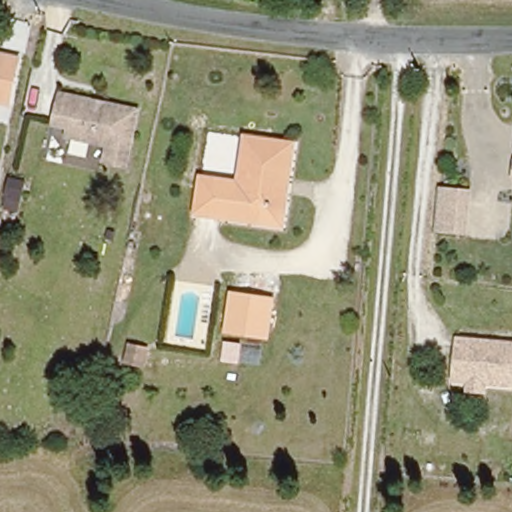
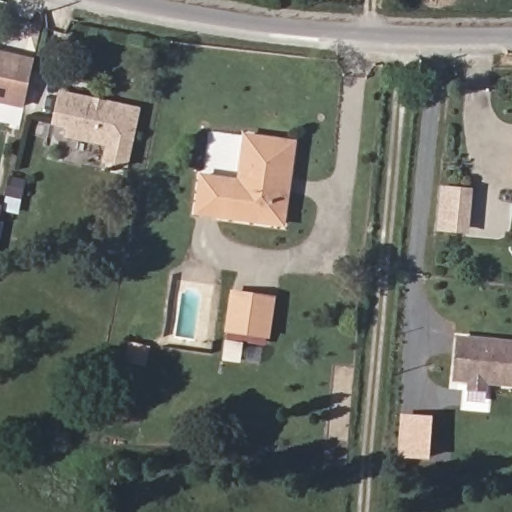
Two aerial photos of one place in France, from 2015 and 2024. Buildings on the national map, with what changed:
unchanged [(20,58),(11,103),(0,101),(0,54),(20,58)]
unchanged [(65,126),(50,123),(56,92),(132,108),(121,164),(101,160),(104,144),(64,135),(65,126)]
unchanged [(277,220),(200,209),(204,176),(241,181),(248,136),(295,143),(290,182),(285,221),(277,220)]
unchanged [(468,236),(433,232),(439,186),(473,189),(468,236)]
unchanged [(30,191),(26,210),(10,206),(15,188),(30,191)]
new [(1,206),(0,210),(0,206),(1,206)]
unchanged [(268,339),(224,333),(231,291),(275,297),(268,339)]
unchanged [(512,340),(512,383),(455,377),(459,336),(512,340)]
new [(433,417),(430,461),(398,458),(401,414),(433,417)]

